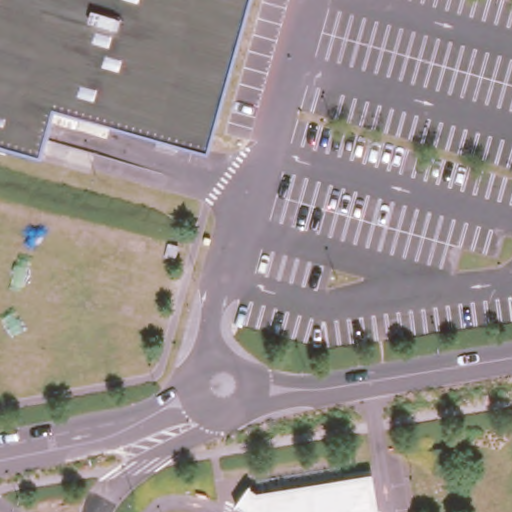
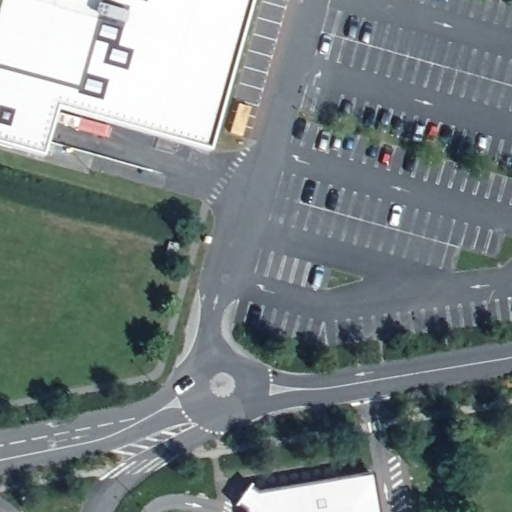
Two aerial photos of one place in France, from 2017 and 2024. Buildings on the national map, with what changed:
unchanged [(208,146),(57,105),(43,152),(0,139),(0,0),(249,0),(208,146)]
unchanged [(239,477),(247,483),(272,479),(273,485),(330,476),(330,469),(362,465),(370,512),(237,512),(235,497),(227,492),(239,477)]

